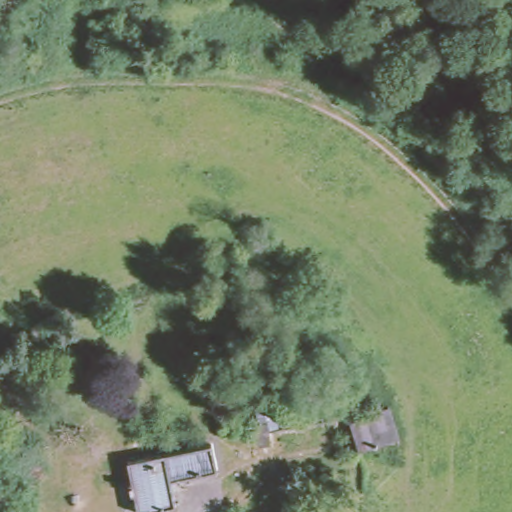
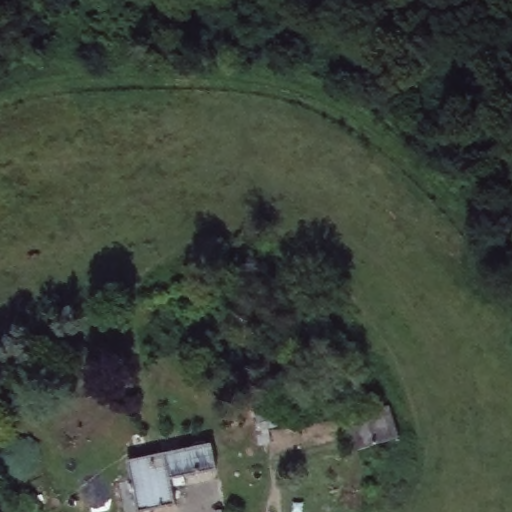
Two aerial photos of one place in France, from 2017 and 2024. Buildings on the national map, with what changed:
unchanged [(362,446),(349,412),(388,398),(401,433),(362,446)]
unchanged [(216,466),(171,478),(176,504),(141,510),(131,458),(212,443),(216,466)]

